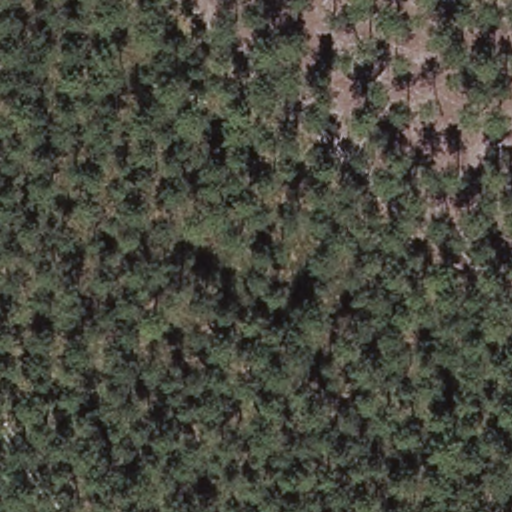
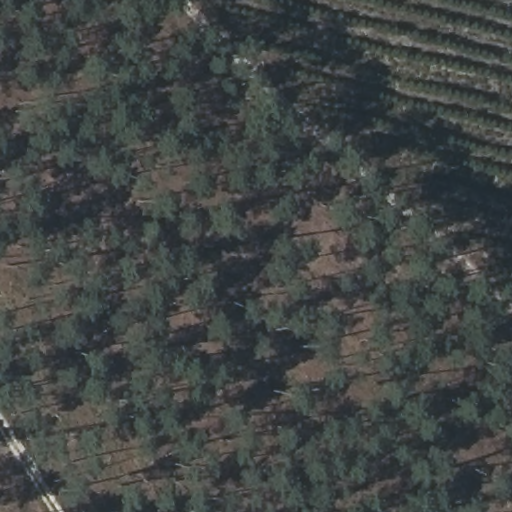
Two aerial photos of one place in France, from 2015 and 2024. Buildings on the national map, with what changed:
[]

